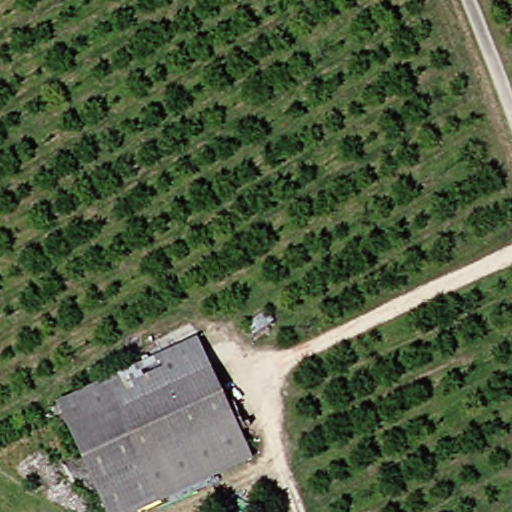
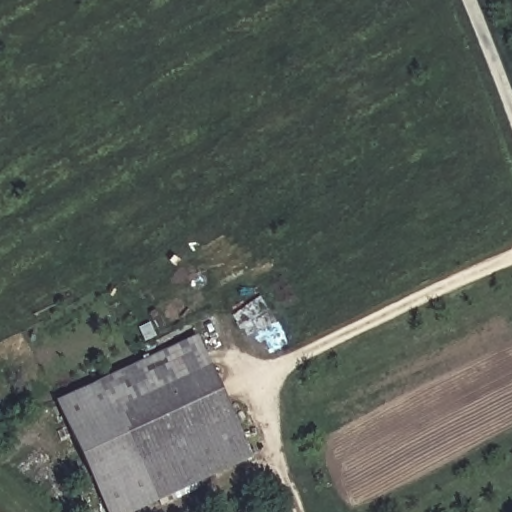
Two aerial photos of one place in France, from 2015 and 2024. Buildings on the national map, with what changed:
unchanged [(242,442),(97,504),(62,415),(207,353),(242,442)]

